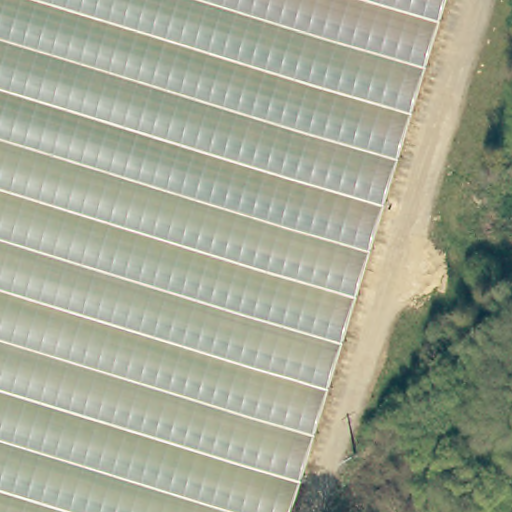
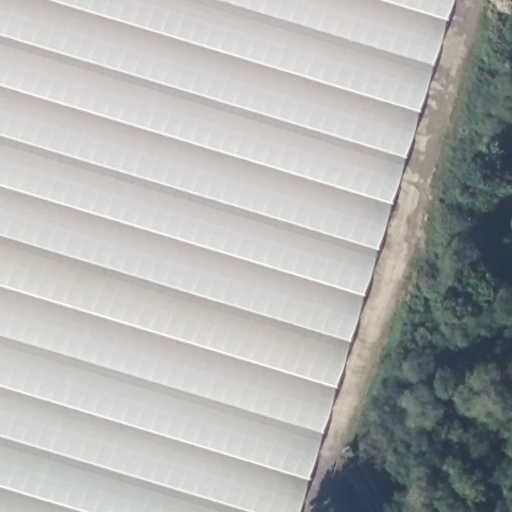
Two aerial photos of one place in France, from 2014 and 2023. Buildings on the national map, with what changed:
unchanged [(294,512),(0,512),(0,0),(449,0),(294,512)]

